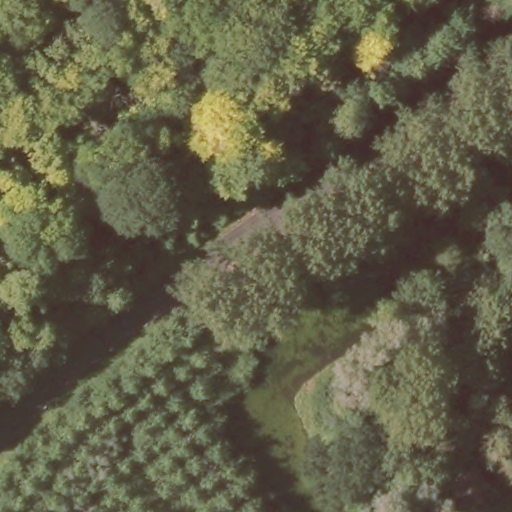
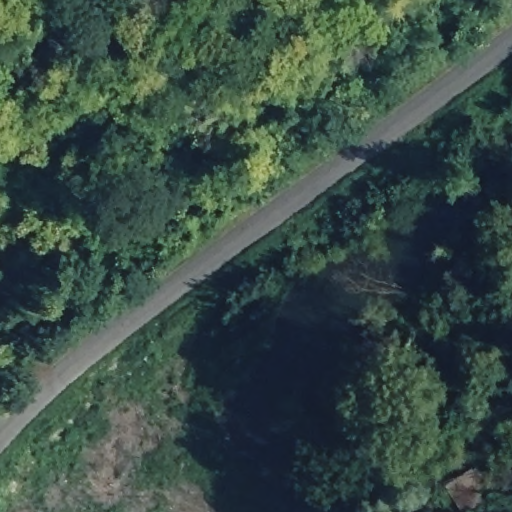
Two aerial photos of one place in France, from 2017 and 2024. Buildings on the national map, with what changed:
unchanged [(449,488),(481,469),(495,492),(468,512),(465,512),(449,488)]

